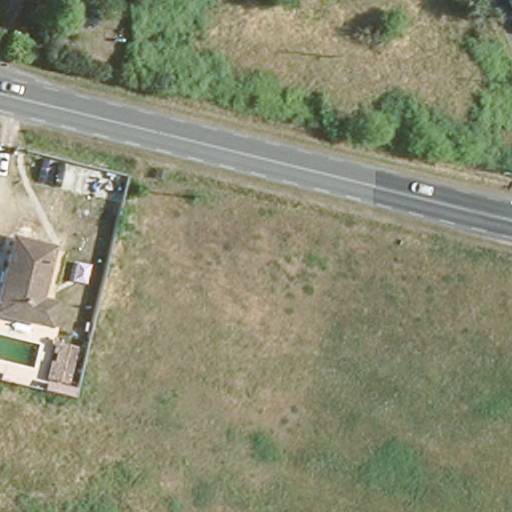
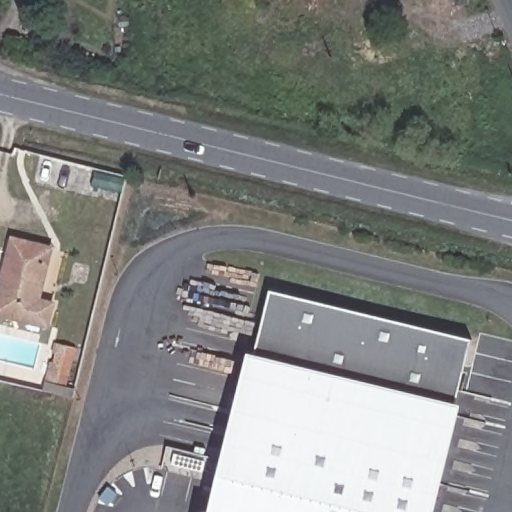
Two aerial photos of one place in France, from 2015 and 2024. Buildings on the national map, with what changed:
unchanged [(53,301),(47,325),(0,312),(0,293),(15,240),(53,250),(38,297),(53,301)]
new [(472,341),(458,406),(462,407),(437,512),(211,512),(249,354),(259,356),(271,292),(472,341)]

